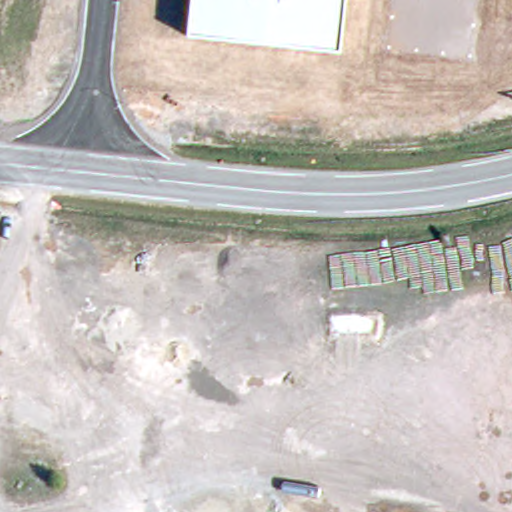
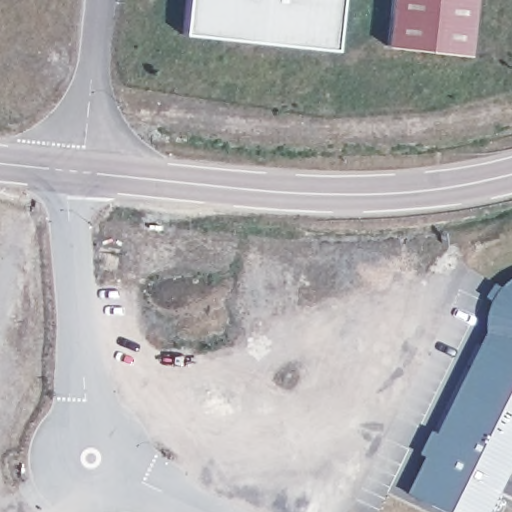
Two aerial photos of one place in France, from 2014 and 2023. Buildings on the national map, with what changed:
unchanged [(183,33),(185,0),(340,0),(335,50),(183,33)]
new [(386,46),(391,0),(474,0),(468,55),(386,46)]
new [(420,456),(429,437),(438,442),(490,336),(488,329),(490,319),(493,307),(487,303),(497,290),(503,295),(512,287),(512,454),(483,512),(438,512),(420,503),(420,504),(410,499),(428,460),(420,456)]

